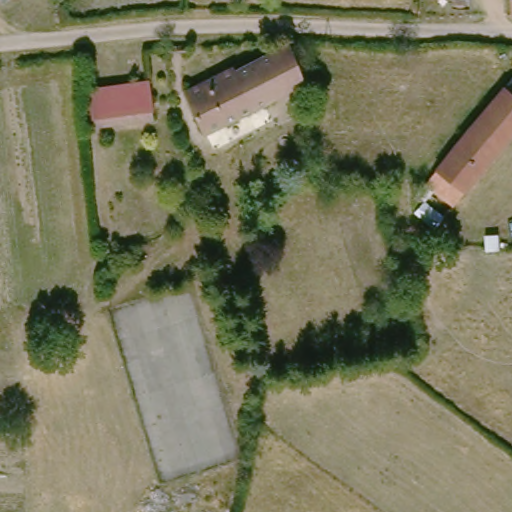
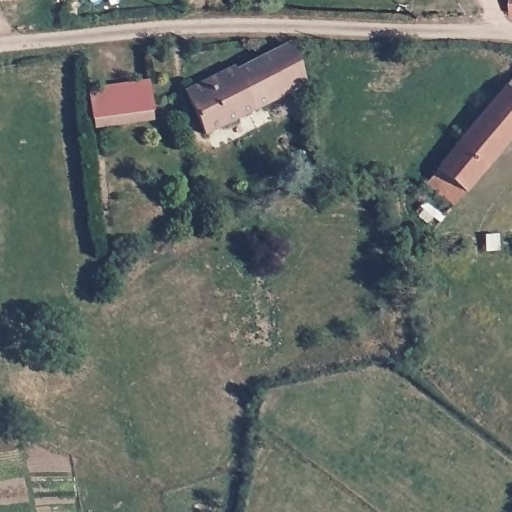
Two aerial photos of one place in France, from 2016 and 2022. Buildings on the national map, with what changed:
unchanged [(8,0),(13,0),(10,3),(8,0)]
unchanged [(212,136),(195,101),(244,76),(242,71),(292,47),(310,84),(313,89),(311,89),(212,136)]
unchanged [(97,130),(95,122),(92,93),(152,87),(155,118),(156,126),(97,130)]
unchanged [(437,198),(429,209),(420,201),(502,95),(505,97),(512,88),(512,146),(460,215),(437,198)]
unchanged [(419,222),(429,209),(449,224),(439,237),(419,222)]

